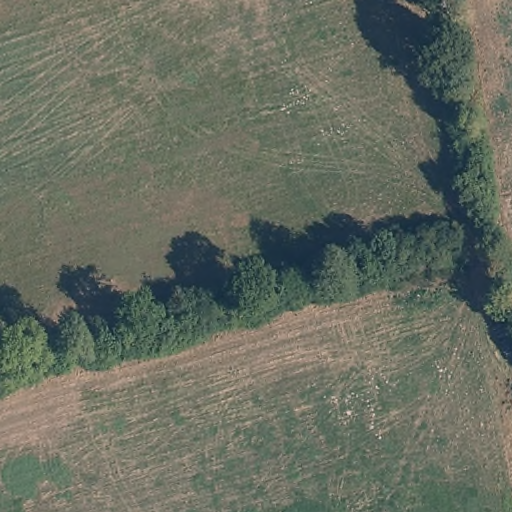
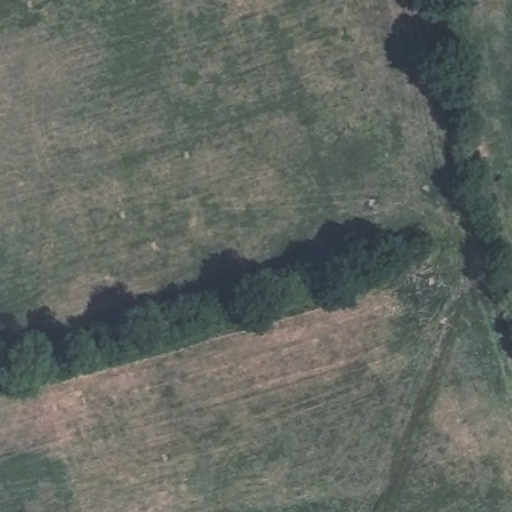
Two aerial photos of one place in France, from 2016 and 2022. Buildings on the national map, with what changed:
[]

